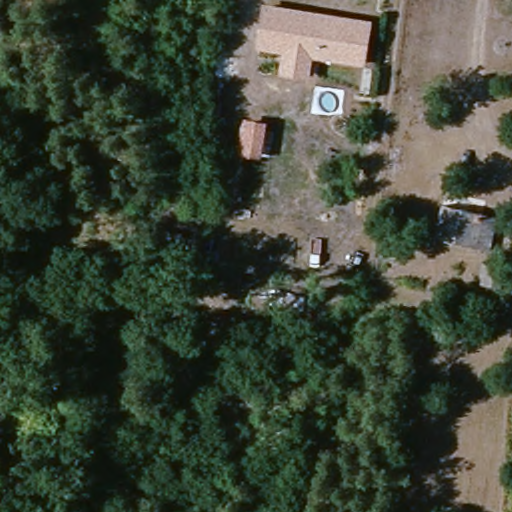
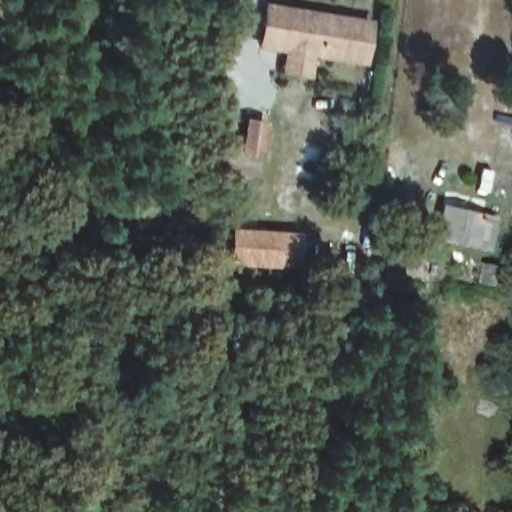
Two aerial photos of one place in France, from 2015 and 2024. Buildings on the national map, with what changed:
unchanged [(285,75),(288,53),(273,51),(261,49),(264,29),(266,10),(369,25),(364,64),(312,56),(309,79),(285,75)]
unchanged [(262,128),(258,158),(242,156),(246,126),(262,128)]
unchanged [(484,249),(470,247),(429,243),(434,208),(473,212),(489,214),(484,249)]
new [(230,229),(300,234),(298,270),(227,266),(230,229)]

